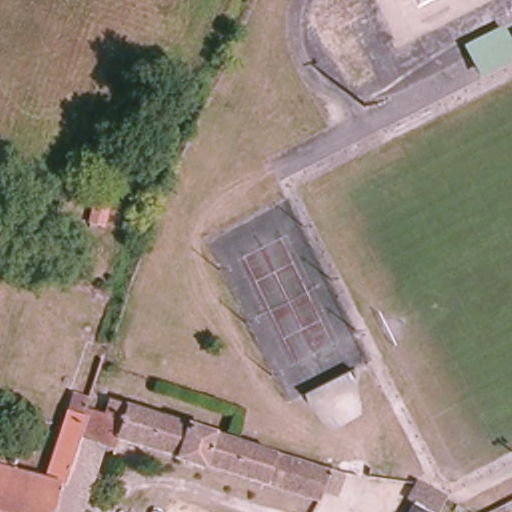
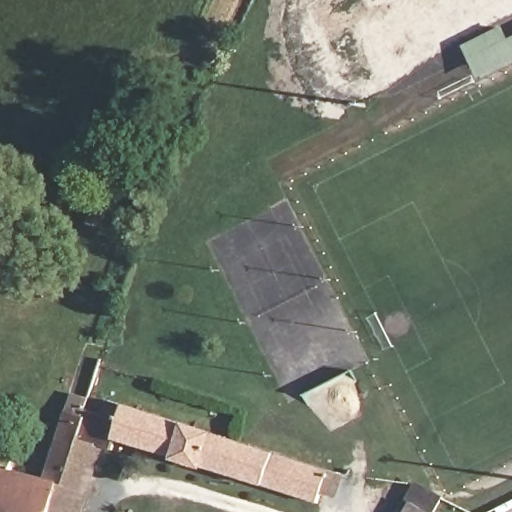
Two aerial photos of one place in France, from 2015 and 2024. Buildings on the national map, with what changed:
unchanged [(475,77),(466,59),(512,38),(512,60),(475,77)]
unchanged [(115,202),(109,229),(98,226),(104,199),(115,202)]
unchanged [(65,483),(60,499),(55,512),(0,512),(0,454),(15,459),(11,474),(46,484),(88,360),(103,365),(80,429),(84,430),(80,439),(65,483)]
unchanged [(106,390),(104,399),(111,402),(329,471),(318,502),(117,439),(114,449),(101,445),(80,439),(84,430),(98,387),(106,390)]
unchanged [(86,490),(65,483),(80,439),(101,445),(86,490)]
unchanged [(418,508),(411,504),(419,489),(438,498),(430,512),(415,512),(418,508)]

